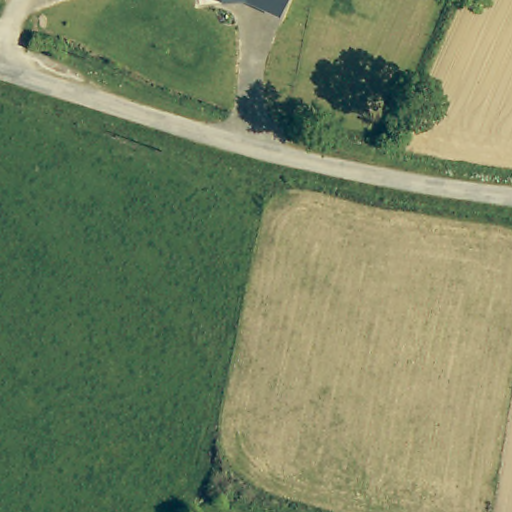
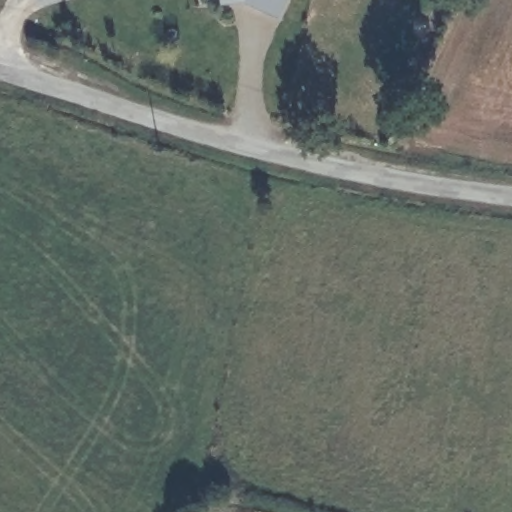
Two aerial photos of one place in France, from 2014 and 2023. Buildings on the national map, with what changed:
unchanged [(242,2),(219,4),(218,0),(285,0),(277,18),(242,2)]

